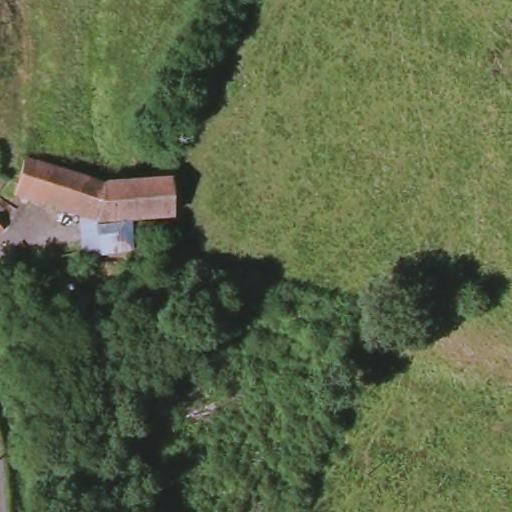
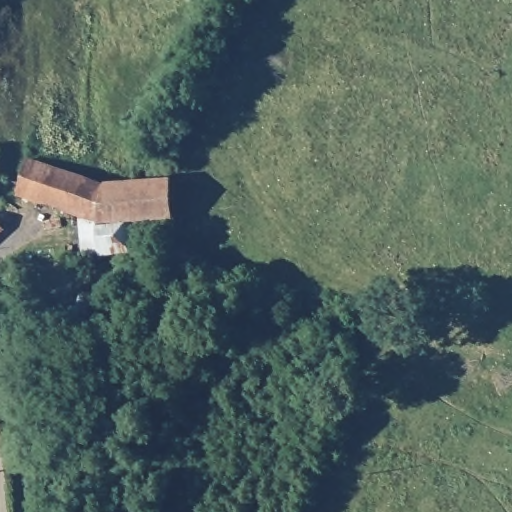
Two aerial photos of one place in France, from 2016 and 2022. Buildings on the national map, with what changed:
unchanged [(27,160),(108,186),(170,179),(171,217),(153,217),(136,218),(130,219),(97,220),(81,215),(17,195),(27,160)]
unchanged [(97,220),(130,219),(132,247),(83,251),(81,215),(97,220)]
unchanged [(7,229),(0,236),(0,221),(7,229)]

